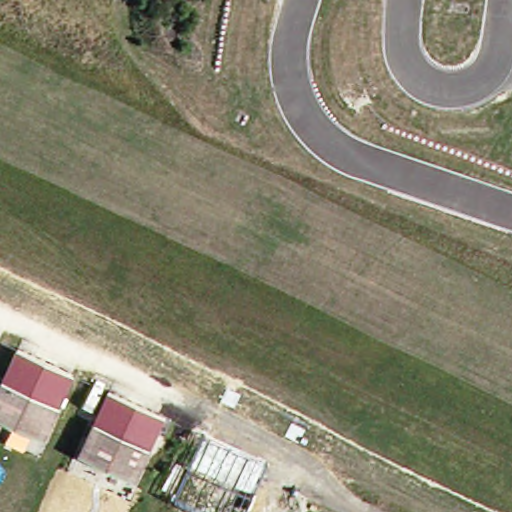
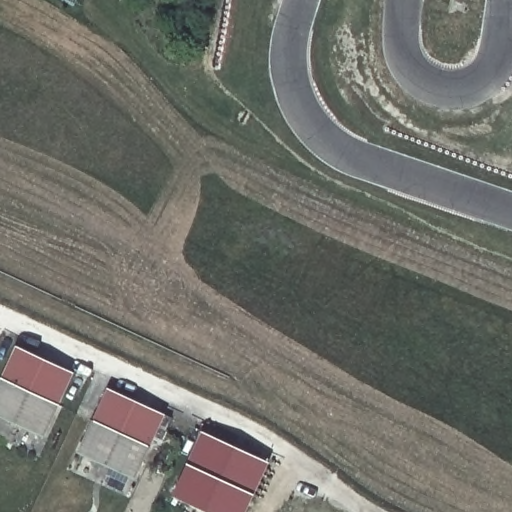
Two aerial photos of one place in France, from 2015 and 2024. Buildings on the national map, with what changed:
unchanged [(41,437),(0,419),(0,381),(15,348),(69,372),(41,437)]
unchanged [(129,483),(73,458),(102,393),(156,417),(150,433),(129,483)]
new [(264,461),(240,512),(204,512),(170,497),(200,432),(264,461)]

